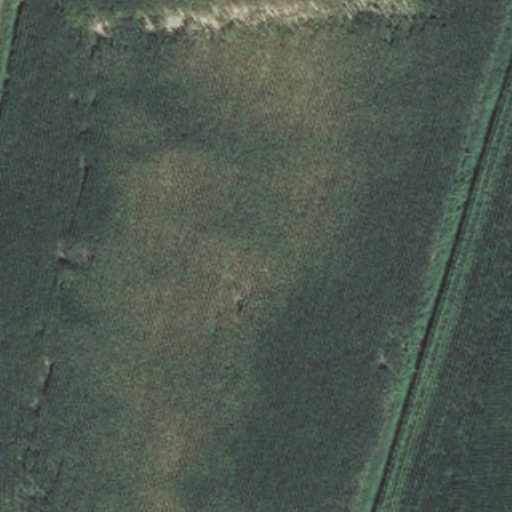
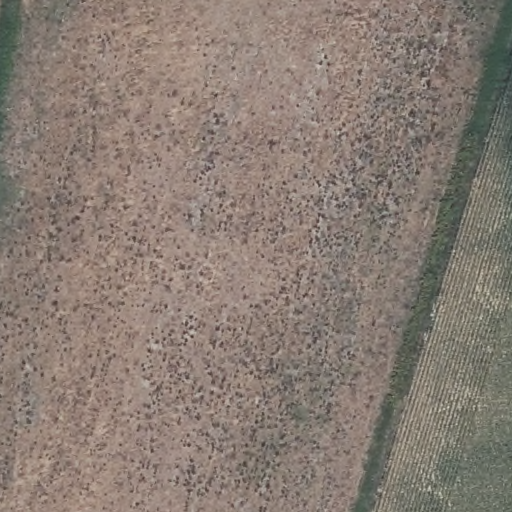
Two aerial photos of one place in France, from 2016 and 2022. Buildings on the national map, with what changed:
[]

